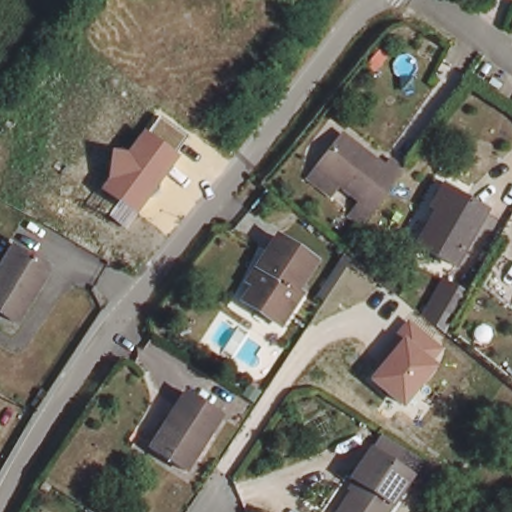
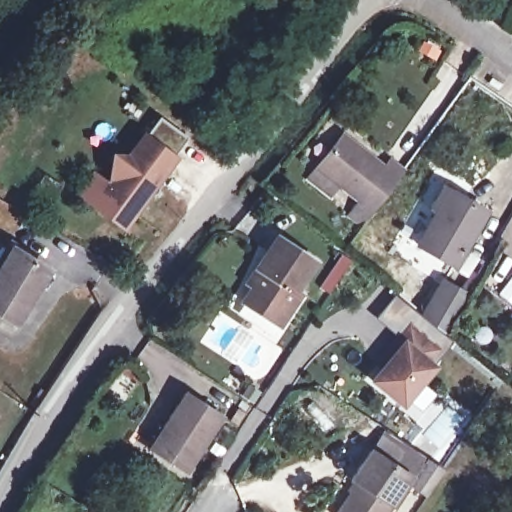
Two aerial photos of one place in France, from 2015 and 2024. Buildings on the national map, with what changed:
unchanged [(185,136),(173,153),(178,156),(124,230),(110,220),(120,205),(99,191),(108,181),(111,152),(127,153),(143,131),(148,135),(159,117),(185,136)]
unchanged [(350,145),(391,175),(365,208),(324,176),(350,145)]
unchanged [(451,267),(418,247),(438,213),(428,207),(442,183),(455,191),(453,195),(483,212),(451,267)]
unchanged [(315,257),(295,290),(301,294),(282,323),(245,299),(255,283),(247,277),(256,263),(276,232),(315,257)]
unchanged [(47,268),(14,323),(0,315),(0,270),(14,249),(47,268)]
unchanged [(466,272),(475,277),(463,297),(444,332),(425,316),(442,285),(454,292),(466,272)]
unchanged [(441,347),(431,361),(436,365),(405,408),(369,382),(402,340),(396,335),(407,320),(441,347)]
unchanged [(260,395),(255,402),(245,395),(250,388),(260,395)]
unchanged [(220,419),(183,474),(145,451),(184,395),(220,419)]
unchanged [(364,450),(367,452),(401,474),(404,475),(380,512),(330,512),(352,481),(345,477),(364,450)]

